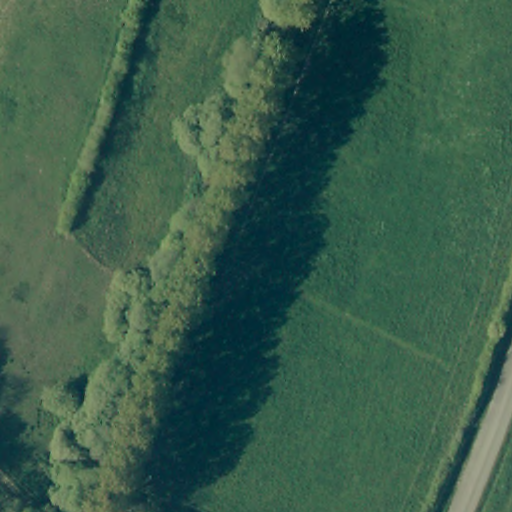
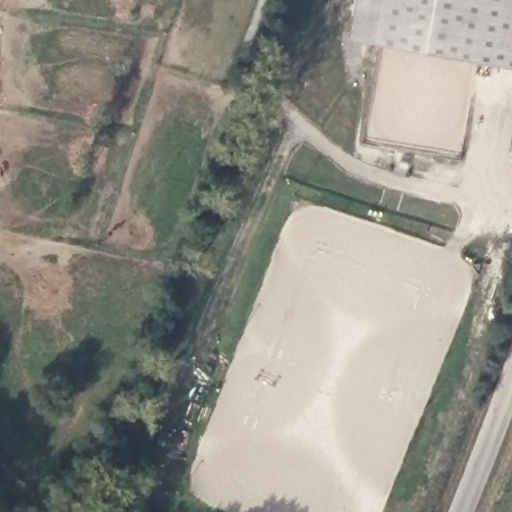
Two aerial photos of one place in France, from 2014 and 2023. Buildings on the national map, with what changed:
new [(512,69),(351,40),(358,0),(512,0),(512,69)]

